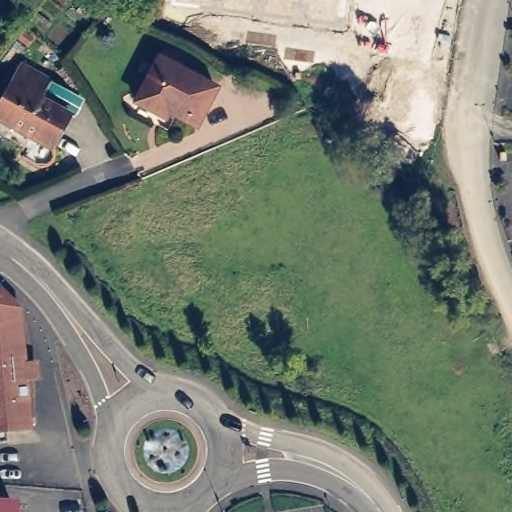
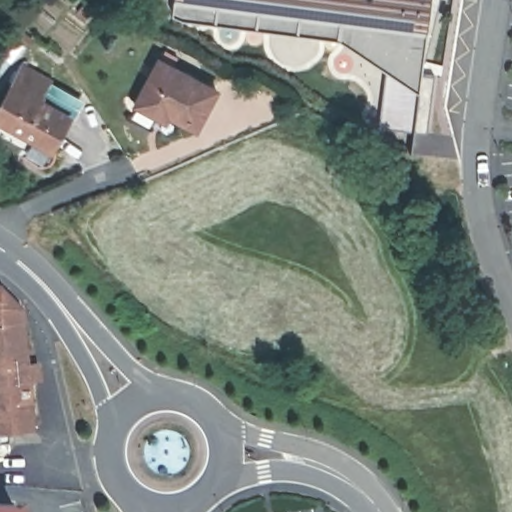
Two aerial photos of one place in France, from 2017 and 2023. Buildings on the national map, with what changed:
new [(427,132),(380,126),(387,70),(341,40),(172,16),(174,0),(431,0),(422,76),(433,76),(427,132)]
unchanged [(159,115),(135,102),(160,60),(215,90),(195,127),(168,114),(165,119),(159,115)]
unchanged [(48,95),(79,114),(58,154),(0,124),(0,103),(22,62),(62,76),(48,95)]
unchanged [(35,433),(0,444),(0,290),(25,311),(35,433)]
unchanged [(20,512),(0,512),(0,498),(20,500),(20,512)]

